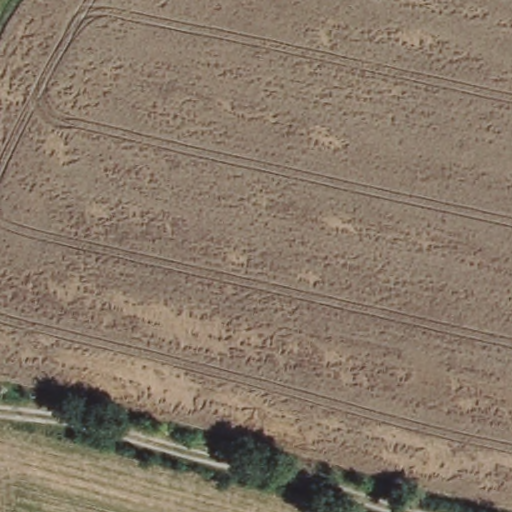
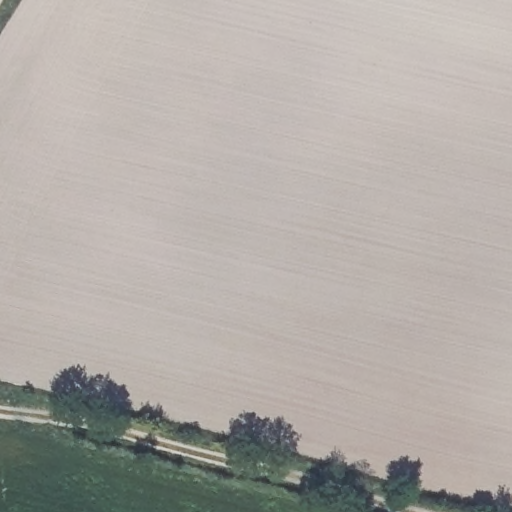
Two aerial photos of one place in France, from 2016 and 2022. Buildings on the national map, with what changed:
[]

